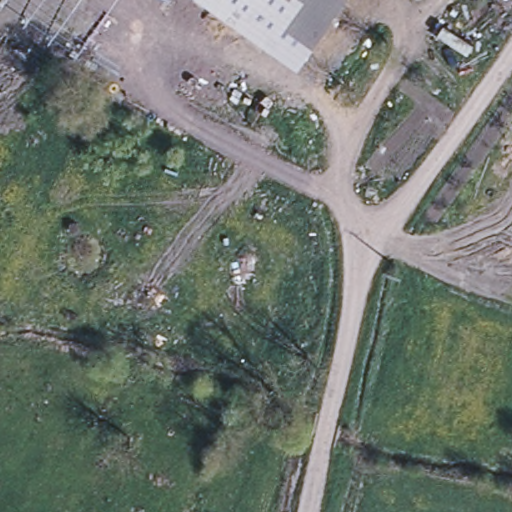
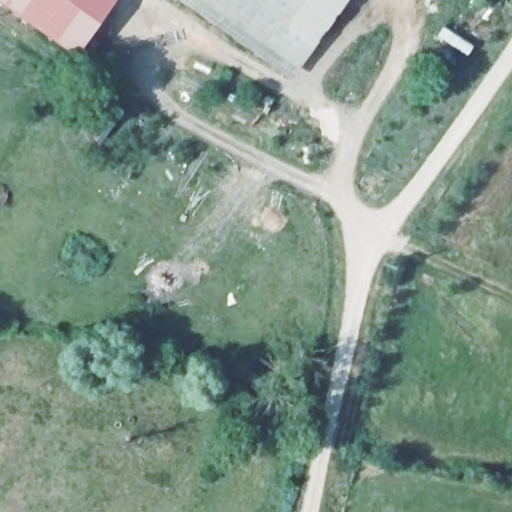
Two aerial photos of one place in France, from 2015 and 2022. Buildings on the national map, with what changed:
new [(74,54),(0,3),(0,0),(112,0),(74,54)]
unchanged [(297,57),(214,0),(336,0),(297,57)]

